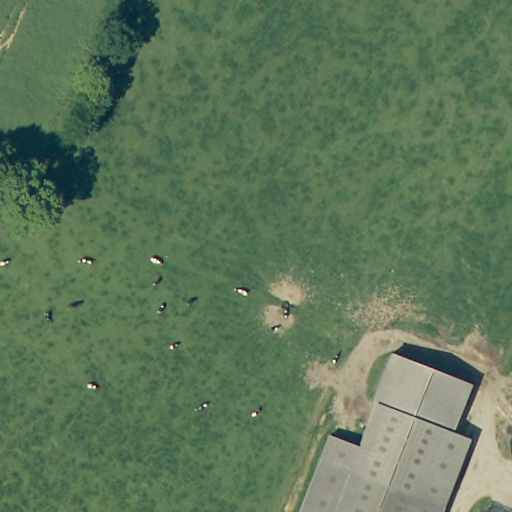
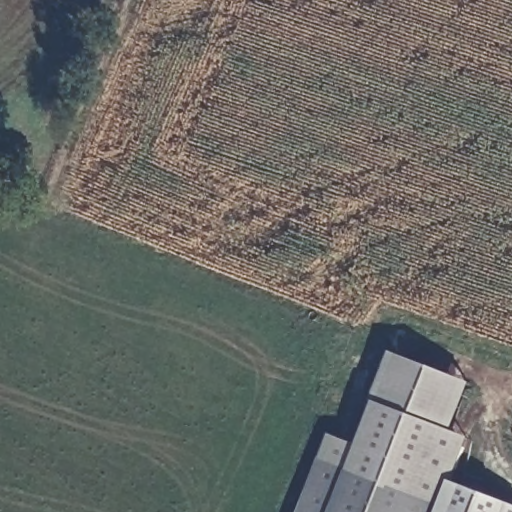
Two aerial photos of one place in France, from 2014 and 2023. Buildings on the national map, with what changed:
unchanged [(380,366),(385,351),(465,380),(452,415),(447,428),(447,429),(372,401),(368,400),(380,366)]
unchanged [(372,401),(447,429),(447,428),(466,435),(438,512),(299,512),(326,435),(356,446),(372,401)]
new [(512,512),(438,512),(447,488),(450,480),(512,504),(512,512)]

